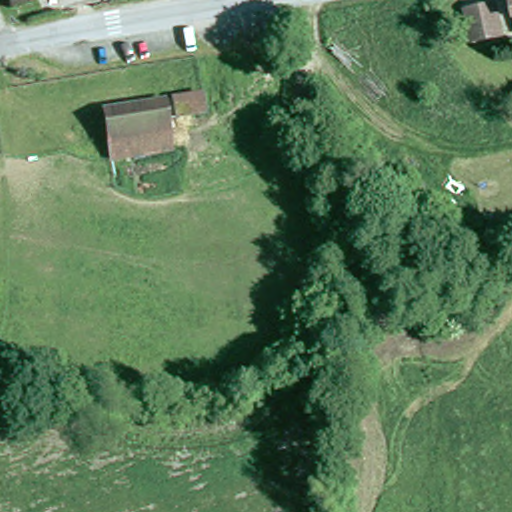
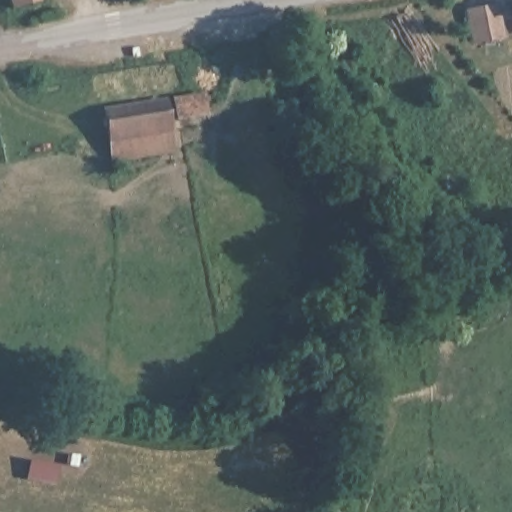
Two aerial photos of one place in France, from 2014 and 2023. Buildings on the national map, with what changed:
unchanged [(42,0),(13,13),(8,0),(41,0),(42,0)]
unchanged [(493,5),(497,36),(469,40),(465,9),(493,5)]
unchanged [(179,114),(175,93),(204,89),(207,109),(179,114)]
unchanged [(104,104),(163,95),(169,127),(109,137),(104,104)]
unchanged [(169,127),(172,147),(112,158),(109,137),(169,127)]

